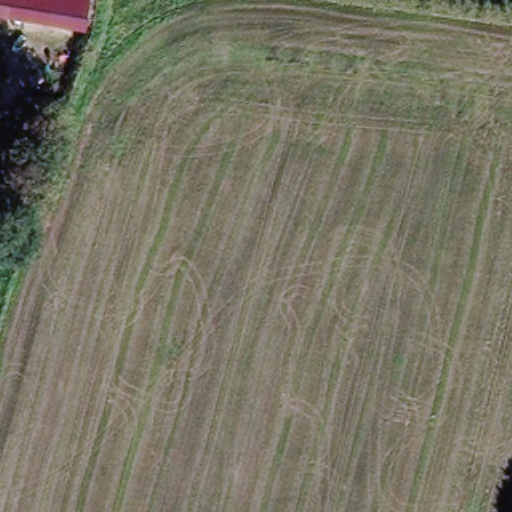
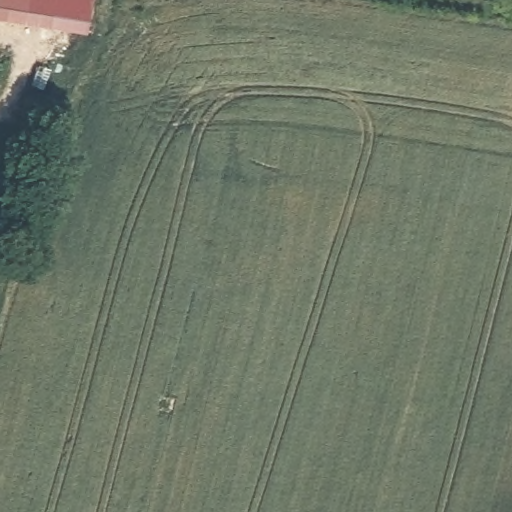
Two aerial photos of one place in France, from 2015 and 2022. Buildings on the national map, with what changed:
unchanged [(82,17),(0,1),(0,0),(85,0),(82,17)]

